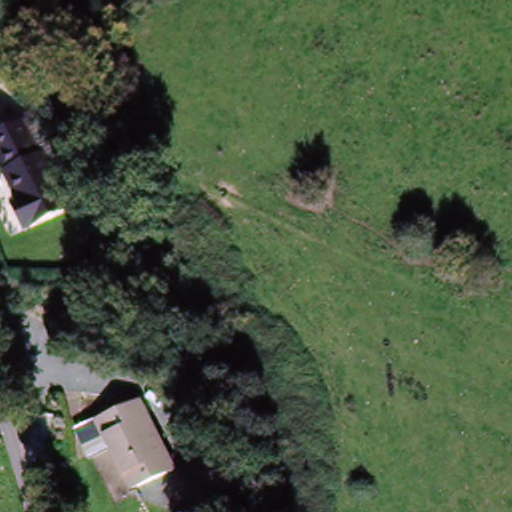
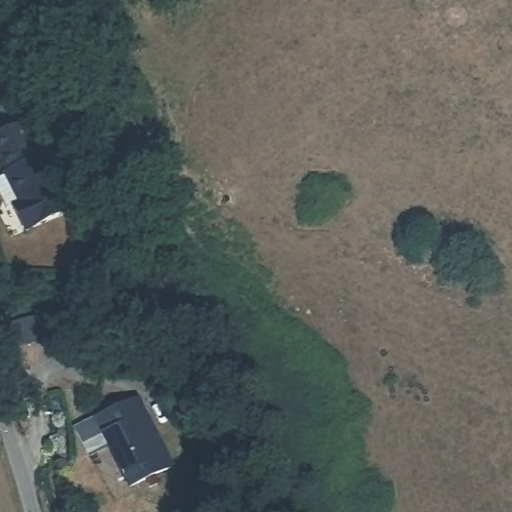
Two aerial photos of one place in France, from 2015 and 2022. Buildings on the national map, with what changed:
unchanged [(47,155),(65,213),(16,227),(8,201),(15,199),(5,167),(9,166),(0,137),(0,129),(32,120),(43,156),(47,155)]
unchanged [(170,468),(127,487),(109,445),(86,455),(72,424),(95,414),(137,394),(170,468)]

